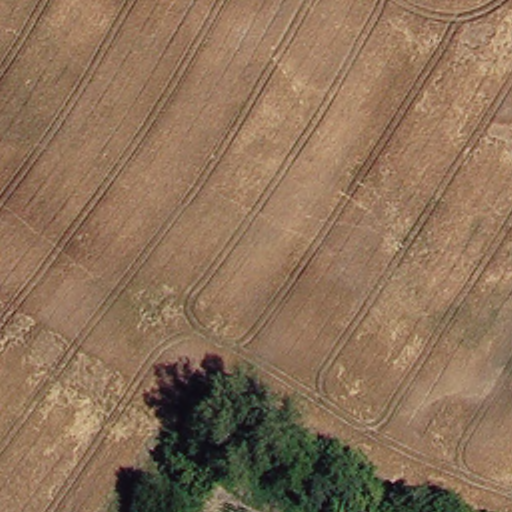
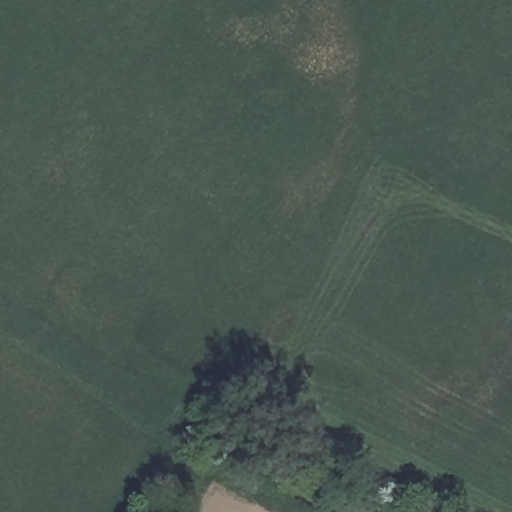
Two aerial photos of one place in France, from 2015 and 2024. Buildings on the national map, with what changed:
[]

